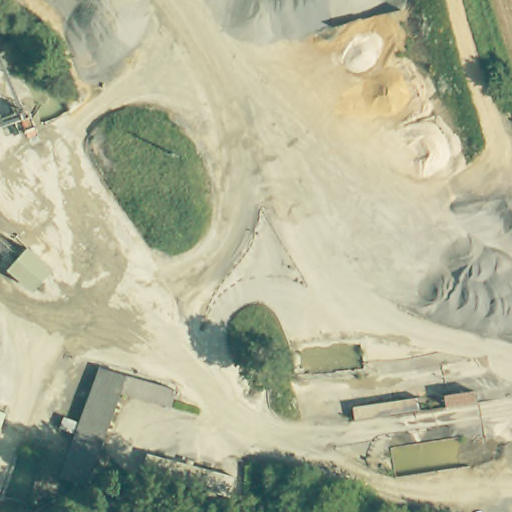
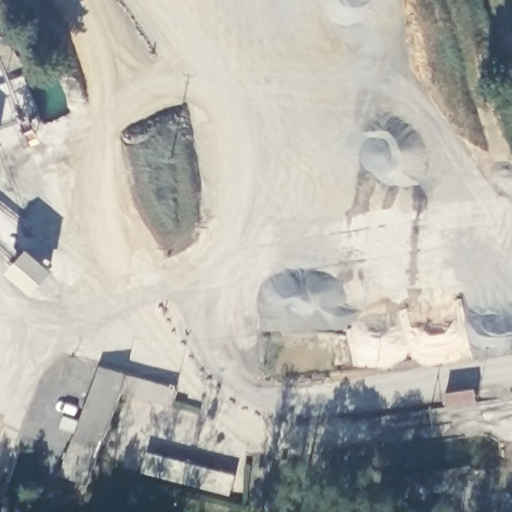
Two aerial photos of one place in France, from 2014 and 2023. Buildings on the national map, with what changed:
unchanged [(29,248),(55,270),(34,292),(9,270),(29,248)]
unchanged [(63,481),(79,431),(86,407),(97,368),(170,388),(166,402),(119,390),(113,410),(105,436),(91,491),(63,481)]
unchanged [(6,413),(0,430),(0,411),(6,413)]
unchanged [(236,478),(229,500),(141,475),(147,454),(236,478)]

